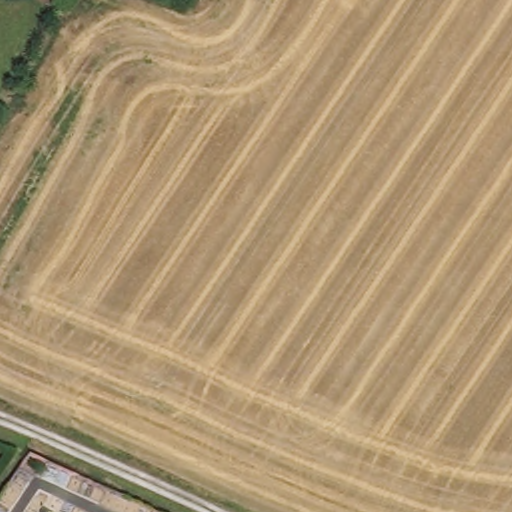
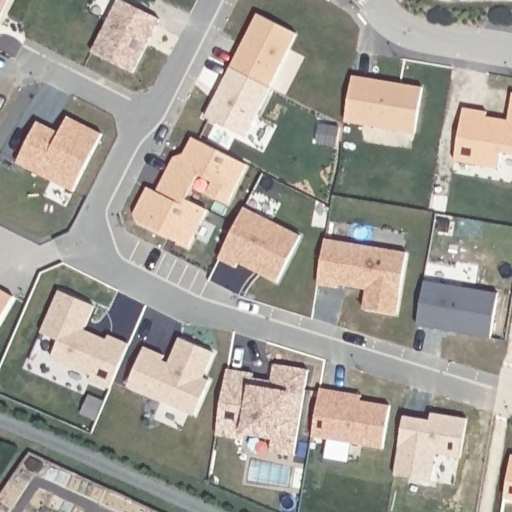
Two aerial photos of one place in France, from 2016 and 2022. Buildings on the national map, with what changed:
new [(0,0),(7,0),(0,16),(0,0)]
new [(160,20),(133,74),(91,51),(117,0),(160,20)]
new [(297,34),(271,87),(230,66),(257,15),(297,34)]
new [(271,87),(246,137),(206,117),(214,100),(219,102),(228,84),(222,81),(230,66),(271,87)]
new [(422,87),(416,134),(346,123),(352,75),(422,87)]
new [(488,110),(487,116),(508,120),(512,96),(512,155),(503,154),(500,168),(455,160),(463,108),(488,110)]
new [(301,236),(277,283),(239,263),(236,269),(220,260),(245,208),(301,236)]
new [(406,252),(397,315),(362,310),(365,290),(337,285),(337,287),(318,284),(326,239),(406,252)]
new [(463,270),(461,287),(498,294),(492,336),(418,323),(427,264),(463,270)]
new [(0,319),(0,289),(13,296),(0,319)]
new [(95,305),(84,330),(107,340),(110,335),(130,344),(110,389),(89,380),(91,375),(51,356),(58,340),(42,333),(59,290),(95,305)]
new [(166,355),(164,360),(170,363),(179,338),(214,353),(205,377),(210,380),(197,415),(127,387),(144,346),(166,355)]
new [(254,368),(252,376),(272,378),(274,363),(307,368),(293,455),(269,452),(270,439),(244,435),(243,440),(217,435),(228,367),(254,368)]
new [(362,395),(361,400),(389,405),(382,449),(312,437),(321,388),(362,395)]
new [(431,420),(431,412),(468,420),(462,459),(436,455),(432,480),(397,475),(406,415),(431,420)]
new [(512,455),(512,500),(505,499),(512,455)]

